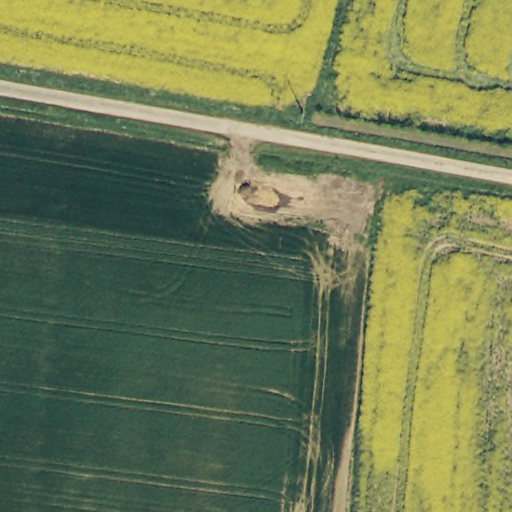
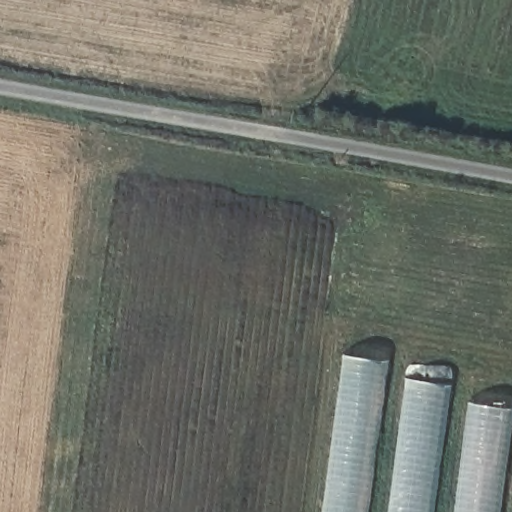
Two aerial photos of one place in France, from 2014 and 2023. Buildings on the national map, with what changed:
new [(371,512),(322,512),(343,355),(392,361),(371,512)]
new [(436,512),(386,512),(402,377),(453,385),(436,512)]
new [(507,512),(456,512),(471,402),(512,408),(512,471),(507,512)]

